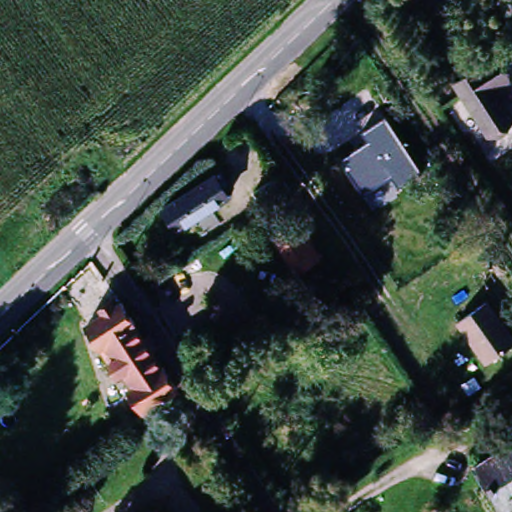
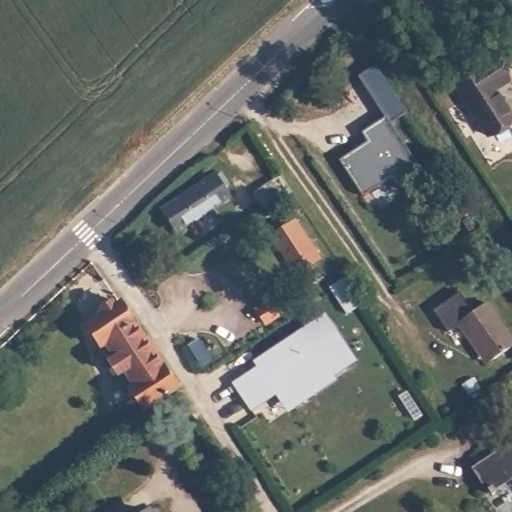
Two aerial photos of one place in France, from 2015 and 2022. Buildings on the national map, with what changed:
unchanged [(512,121),(486,137),(452,83),(489,60),(495,56),(511,81),(506,86),(497,91),(512,114),(512,121)]
unchanged [(339,161),(368,141),(362,132),(386,117),(422,173),(399,187),(393,176),(361,195),(339,161)]
unchanged [(286,167),(298,185),(271,203),(259,185),(286,167)]
unchanged [(191,220),(173,232),(161,210),(215,173),(221,169),(229,181),(223,184),(228,194),(218,202),(218,206),(195,222),(191,220)]
new [(294,223),(318,261),(298,273),(274,235),(294,223)]
unchanged [(485,303),(512,341),(512,346),(491,359),(484,364),(473,348),(457,323),(485,303)]
unchanged [(143,332),(110,352),(108,353),(95,331),(128,310),(143,332)]
new [(356,363),(334,378),(337,382),(329,385),(330,388),(291,420),(276,399),(251,414),(231,386),(256,369),(253,363),(326,315),(356,363)]
unchanged [(168,374),(135,394),(110,352),(143,332),(168,374)]
new [(207,355),(197,362),(185,346),(195,339),(207,355)]
unchanged [(135,394),(168,374),(171,373),(184,393),(148,419),(131,396),(135,394)]
unchanged [(471,471),(512,446),(512,483),(487,498),(471,471)]
unchanged [(155,512),(147,512),(153,508),(155,512)]
unchanged [(27,512),(30,510),(32,512),(27,512)]

